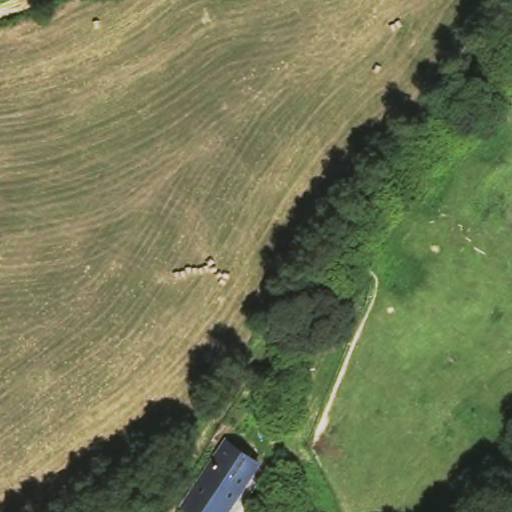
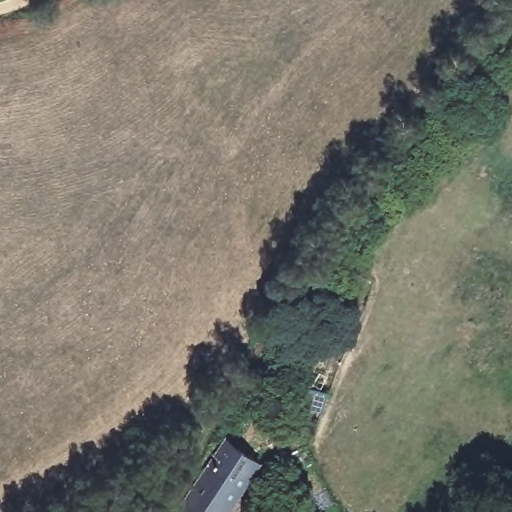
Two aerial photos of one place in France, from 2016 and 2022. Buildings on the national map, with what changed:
unchanged [(230,512),(192,512),(184,505),(229,436),(265,459),(230,512)]

